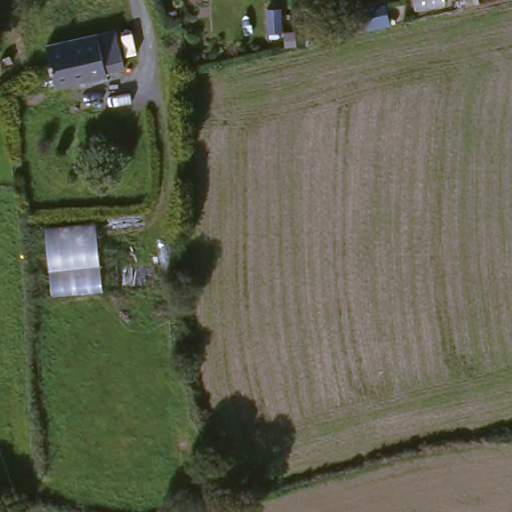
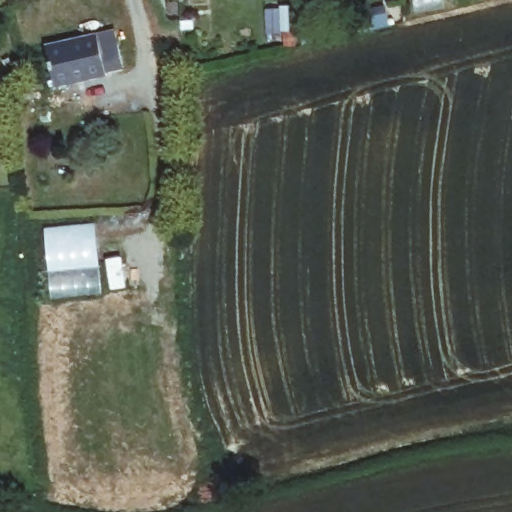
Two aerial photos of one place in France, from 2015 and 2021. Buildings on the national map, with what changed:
unchanged [(356,41),(353,21),(376,16),(381,36),(356,41)]
unchanged [(276,39),(260,40),(259,18),(276,18),(276,39)]
unchanged [(44,43),(114,29),(123,65),(103,71),(103,75),(54,84),(44,43)]
unchanged [(99,260),(47,269),(44,228),(98,222),(99,260)]

